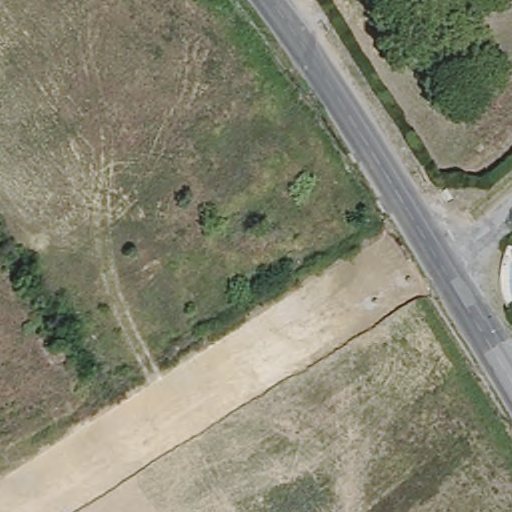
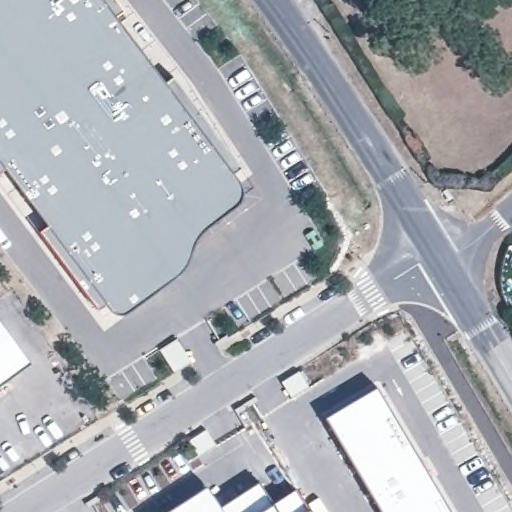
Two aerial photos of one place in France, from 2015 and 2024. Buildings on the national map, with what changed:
new [(240,181),(243,189),(242,196),(237,202),(209,223),(201,230),(195,237),(192,245),(190,254),(187,262),(182,267),(129,308),(123,311),(118,310),(113,307),(109,303),(0,158),(0,0),(103,0),(233,172),(240,181)]
new [(0,381),(0,313),(32,358),(0,381)]
new [(377,380),(456,512),(385,512),(324,411),(377,380)]
new [(208,480),(212,486),(222,501),(260,476),(284,512),(159,512),(208,480)]
new [(277,501),(295,489),(309,510),(310,512),(284,512),(277,501)]

